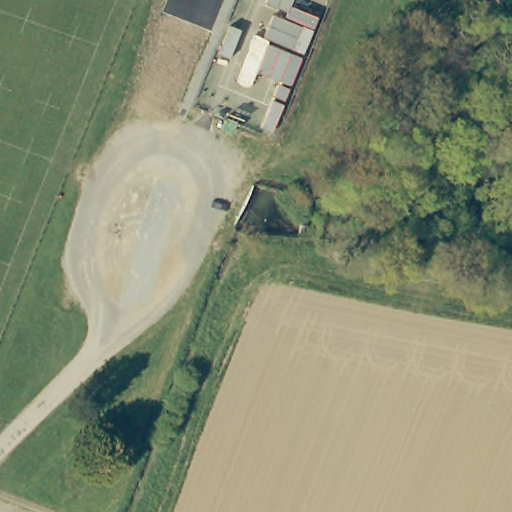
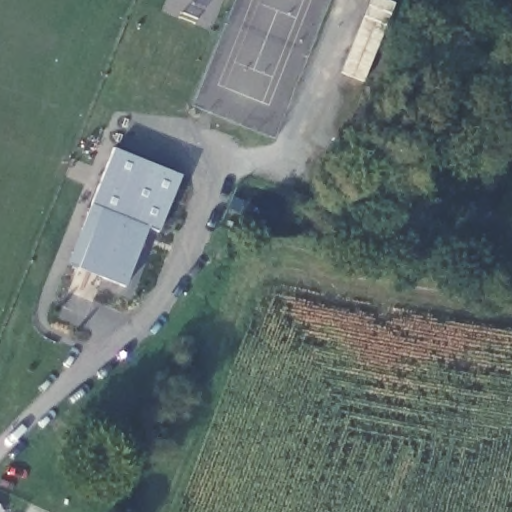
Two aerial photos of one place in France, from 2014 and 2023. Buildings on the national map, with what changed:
new [(182,175),(158,231),(147,227),(125,286),(67,265),(114,148),(182,175)]
demolished [(139,191),(180,207),(151,280),(109,262),(133,205),(139,191)]
unchanged [(338,232),(335,239),(324,234),(327,226),(338,232)]

